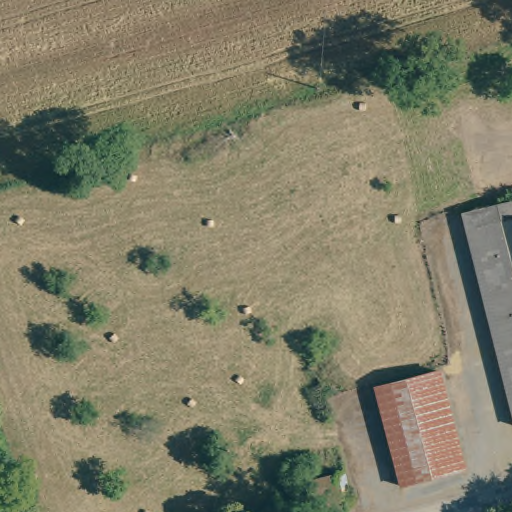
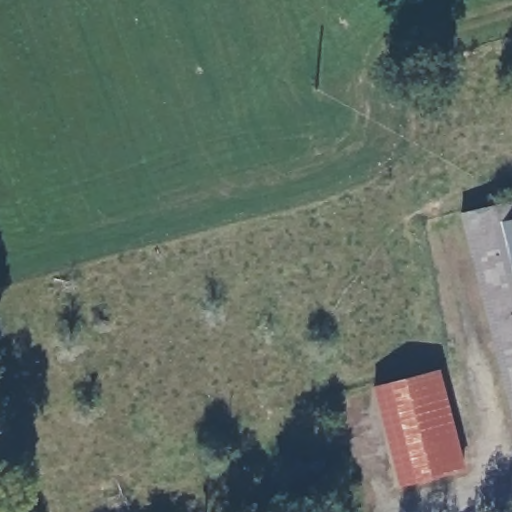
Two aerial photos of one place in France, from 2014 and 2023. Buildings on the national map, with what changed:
unchanged [(489,207),(512,201),(512,420),(460,214),(489,207)]
unchanged [(438,372),(462,470),(398,485),(374,388),(438,372)]
unchanged [(327,512),(312,512),(305,483),(336,477),(342,508),(327,512)]

